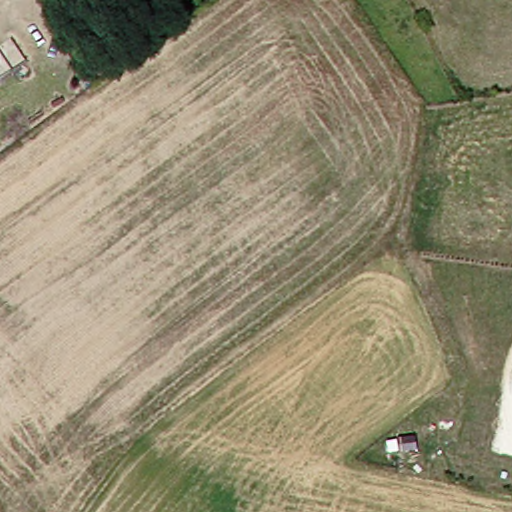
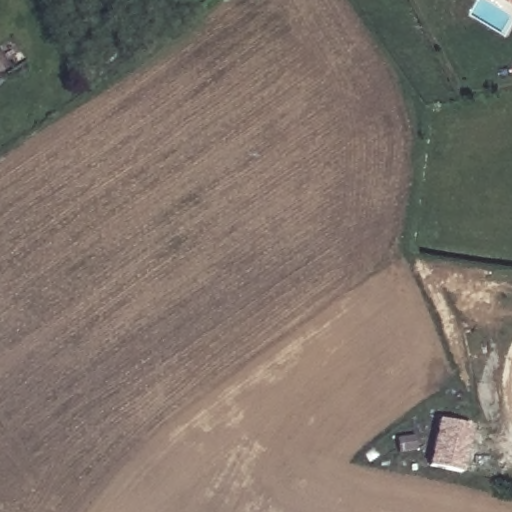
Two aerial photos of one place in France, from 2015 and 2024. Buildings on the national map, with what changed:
new [(512,0),(512,1),(510,0),(512,0)]
new [(435,420),(467,424),(460,471),(428,467),(435,420)]

